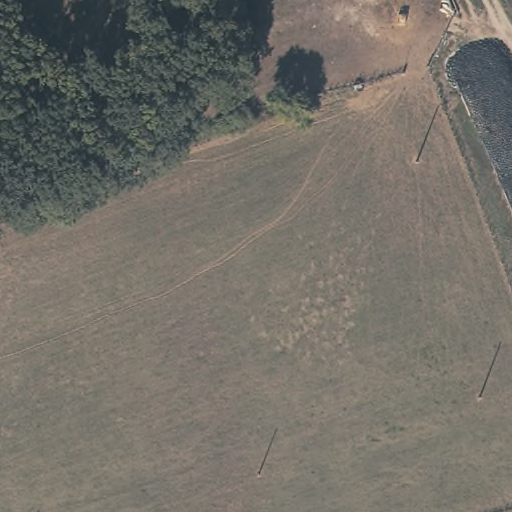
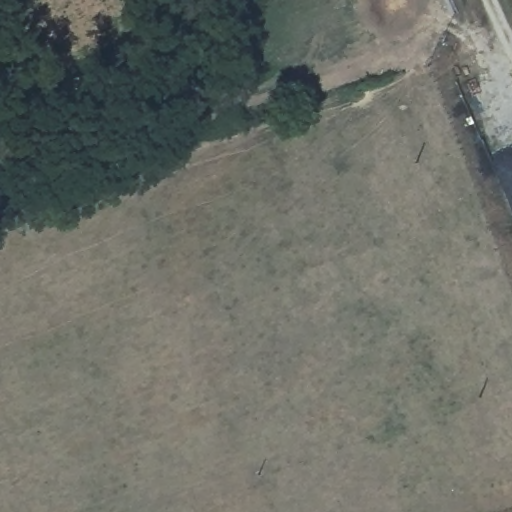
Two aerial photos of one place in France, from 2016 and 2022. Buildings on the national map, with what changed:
unchanged [(143,0),(154,0),(147,6),(143,0)]

